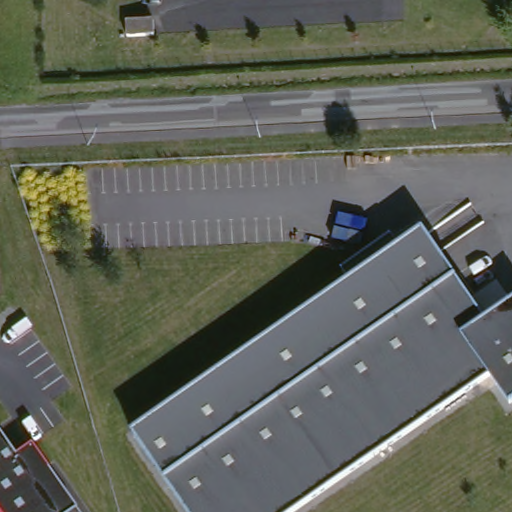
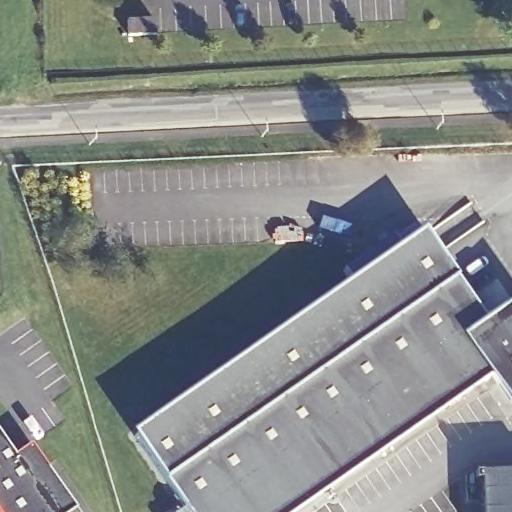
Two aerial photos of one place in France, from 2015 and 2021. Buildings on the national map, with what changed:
unchanged [(151,22),(152,37),(124,39),(123,23),(151,22)]
unchanged [(491,371),(288,512),(190,512),(135,432),(426,229),(483,309),(487,307),(503,308),(512,302),(512,398),(511,399),(491,371)]
unchanged [(20,455),(35,443),(78,506),(69,512),(0,512),(0,427),(20,455)]
new [(512,512),(482,512),(480,473),(512,472),(512,512)]

